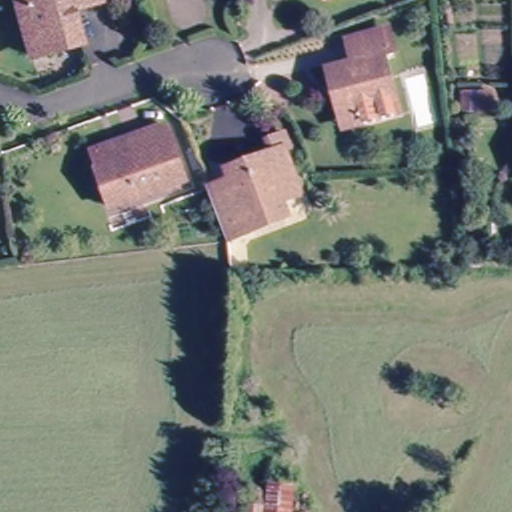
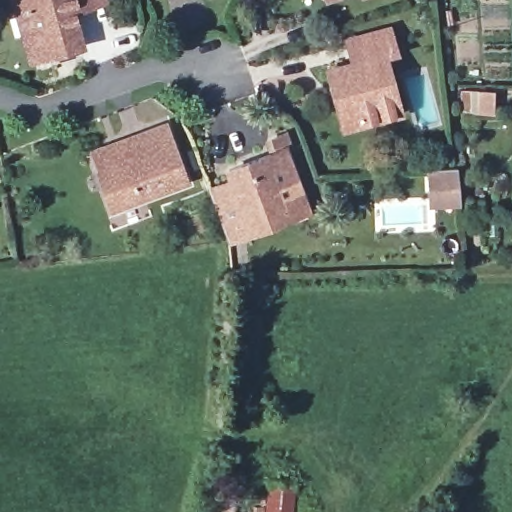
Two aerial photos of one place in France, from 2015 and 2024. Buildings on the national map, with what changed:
unchanged [(70,47),(25,60),(10,0),(98,0),(100,8),(82,13),(62,19),(70,47)]
unchanged [(323,1),(323,0),(327,0),(323,1)]
unchanged [(378,56),(395,112),(355,124),(353,114),(338,118),(324,70),(350,62),(344,42),(383,31),(390,53),(378,56)]
unchanged [(492,100),(505,100),(505,122),(492,121),(492,100)]
unchanged [(111,205),(91,147),(164,122),(184,180),(111,205)]
unchanged [(227,232),(214,194),(209,182),(232,174),(230,164),(285,144),(296,175),(302,190),(282,197),(285,204),(287,211),(254,223),(227,232)]
new [(460,167),(460,206),(427,207),(426,167),(460,167)]
unchanged [(247,512),(250,486),(260,487),(261,480),(295,484),(292,512),(247,512)]
unchanged [(235,491),(234,512),(217,512),(220,490),(235,491)]

